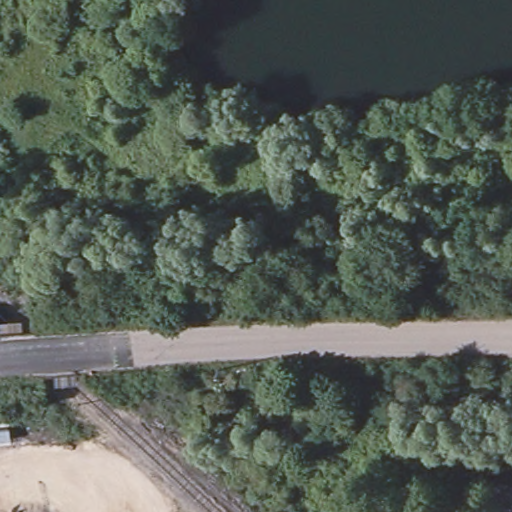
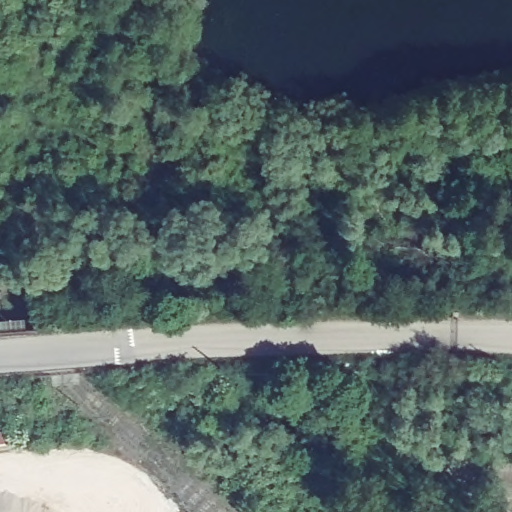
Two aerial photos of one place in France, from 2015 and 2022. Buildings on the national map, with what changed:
unchanged [(0,447),(0,431),(10,432),(8,447),(0,447)]

